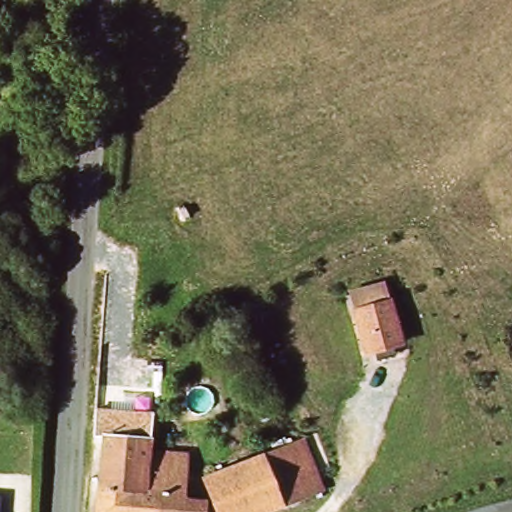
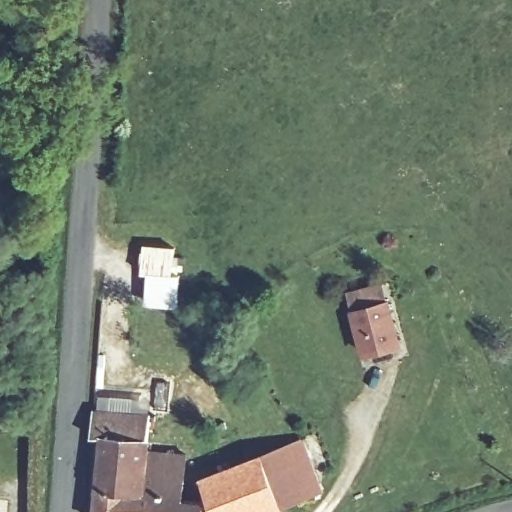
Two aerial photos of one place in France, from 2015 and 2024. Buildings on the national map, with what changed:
new [(141,243),(177,245),(175,272),(145,273),(139,273),(141,243)]
new [(145,273),(175,272),(182,272),(180,307),(144,305),(145,273)]
unchanged [(346,290),(386,278),(392,298),(395,297),(409,344),(367,357),(352,310),(346,290)]
unchanged [(153,437),(150,493),(104,489),(105,439),(99,438),(101,412),(154,414),(153,437)]
unchanged [(309,443),(329,494),(281,512),(220,512),(208,482),(273,455),(309,443)]
unchanged [(193,456),(193,499),(212,500),(211,512),(161,512),(161,493),(163,454),(193,456)]
unchanged [(104,489),(150,493),(161,493),(161,512),(103,512),(104,489)]

